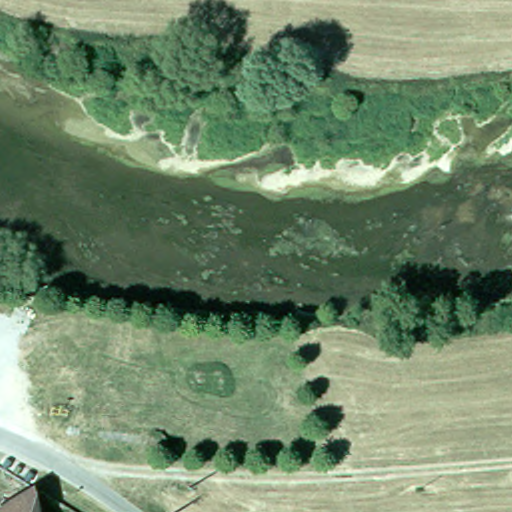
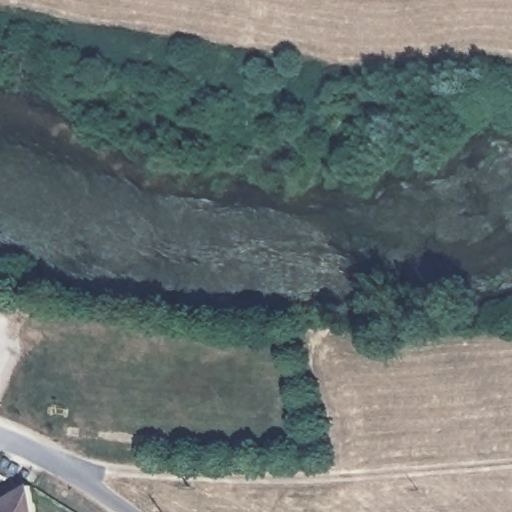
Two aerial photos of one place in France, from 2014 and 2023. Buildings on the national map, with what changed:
unchanged [(27,477),(34,512),(0,512),(0,493),(27,477)]

